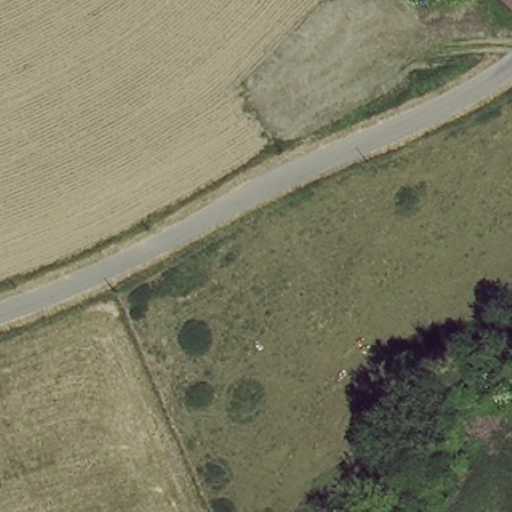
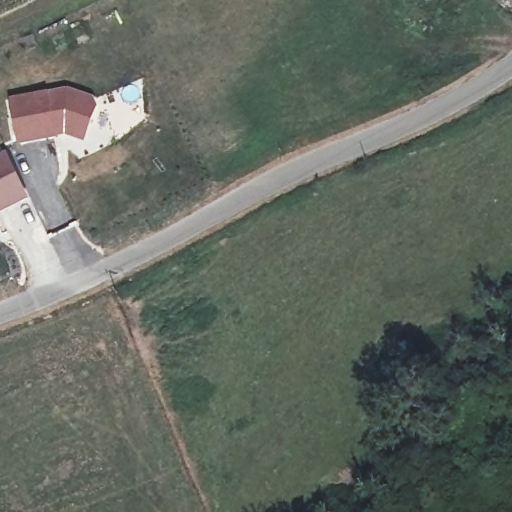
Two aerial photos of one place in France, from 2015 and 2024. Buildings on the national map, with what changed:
unchanged [(512,0),(512,4),(508,0),(512,0)]
new [(63,87),(88,96),(91,103),(80,136),(61,129),(60,125),(48,127),(50,133),(16,139),(8,97),(63,87)]
new [(23,209),(0,219),(0,167),(5,165),(23,209)]

